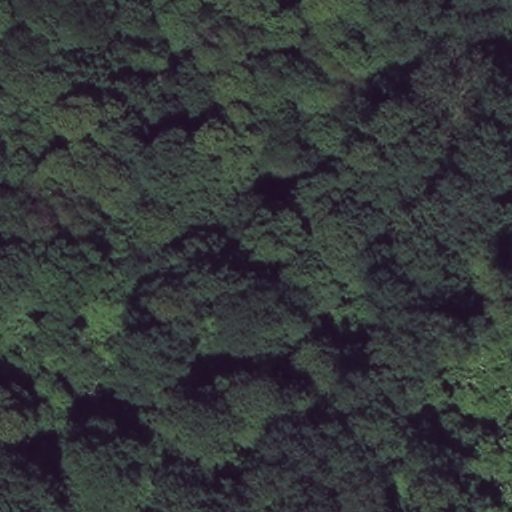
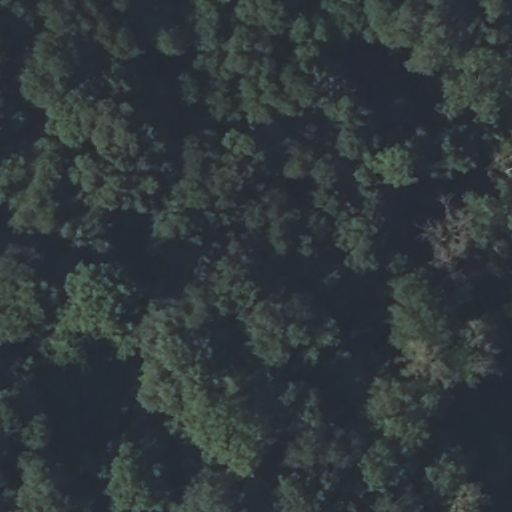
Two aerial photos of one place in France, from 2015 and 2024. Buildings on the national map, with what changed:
[]

